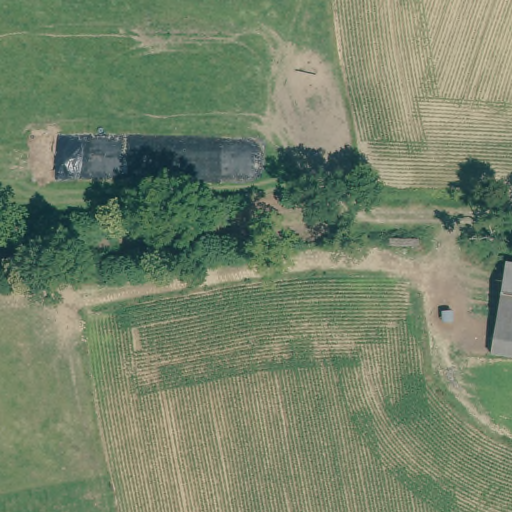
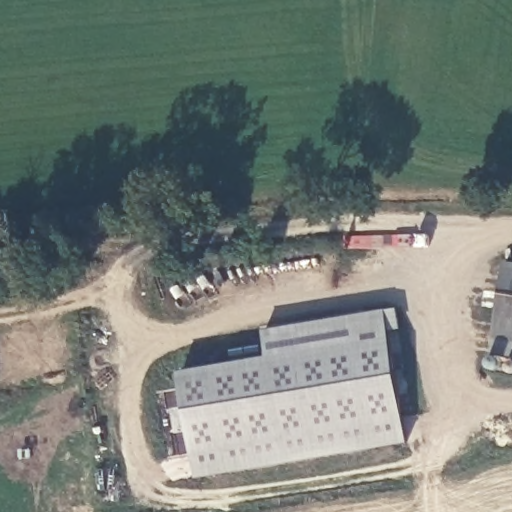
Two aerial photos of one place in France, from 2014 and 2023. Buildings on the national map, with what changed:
unchanged [(512,266),(512,361),(490,359),(502,265),(512,266)]
new [(299,352),(295,325),(385,311),(398,309),(401,330),(390,332),(408,445),(199,479),(194,451),(180,373),(299,352)]

